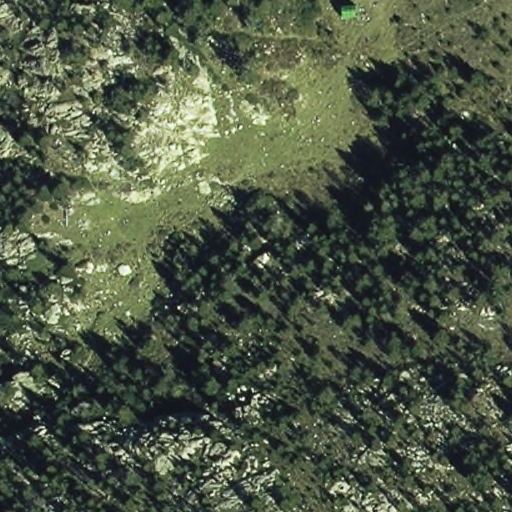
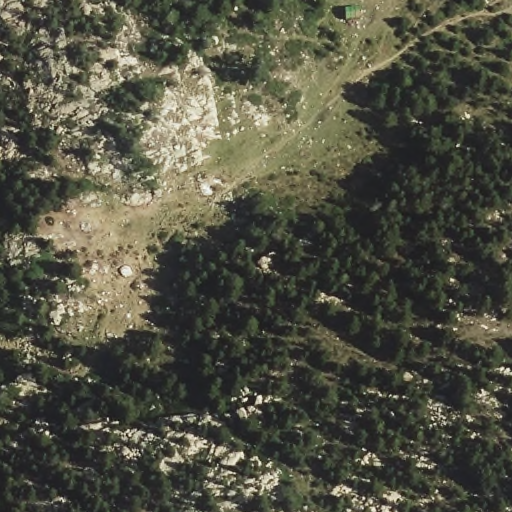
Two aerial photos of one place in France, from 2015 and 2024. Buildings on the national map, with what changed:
unchanged [(370,23),(345,23),(346,7),(368,5),(370,23)]

